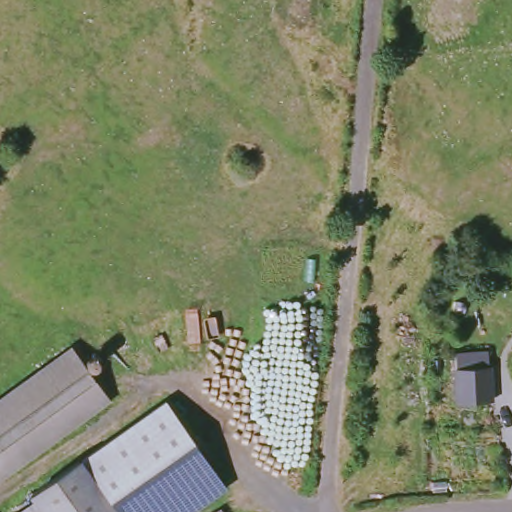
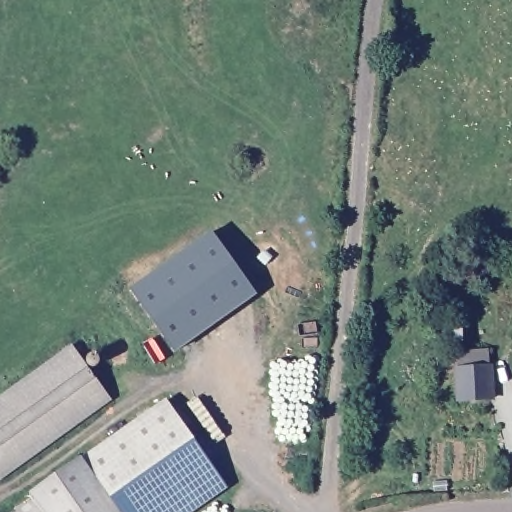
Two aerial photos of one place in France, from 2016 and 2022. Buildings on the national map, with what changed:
new [(213,232),(256,293),(174,351),(131,289),(213,232)]
unchanged [(74,349),(110,399),(0,484),(0,407),(74,349)]
unchanged [(459,399),(457,367),(489,365),(491,398),(459,399)]
unchanged [(166,402),(230,489),(197,512),(118,512),(79,462),(166,402)]
unchanged [(30,496),(79,462),(118,512),(43,512),(35,502),(30,496)]
unchanged [(43,512),(22,512),(35,502),(43,512)]

